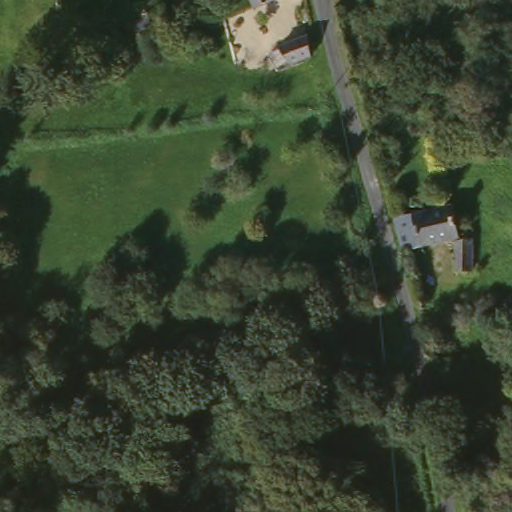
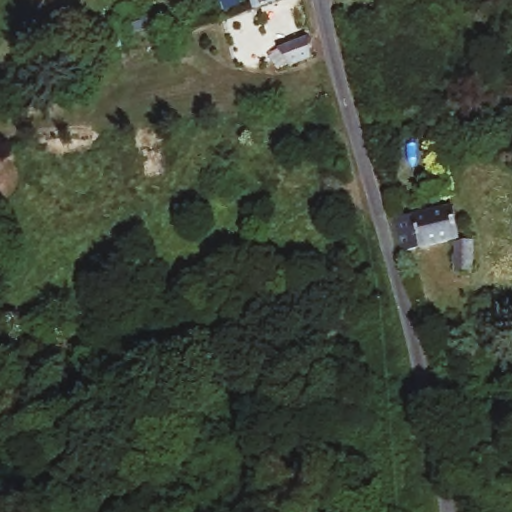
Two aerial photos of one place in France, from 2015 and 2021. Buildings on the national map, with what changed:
unchanged [(251,9),(249,0),(274,0),(251,9)]
unchanged [(150,19),(152,27),(135,32),(132,24),(150,19)]
unchanged [(100,27),(107,56),(80,63),(73,34),(100,27)]
unchanged [(313,64),(293,71),(292,71),(284,48),(307,40),(313,64)]
unchanged [(44,67),(46,80),(46,84),(22,88),(20,70),(44,67)]
unchanged [(462,207),(469,237),(411,250),(403,220),(462,207)]
unchanged [(483,241),(483,273),(465,273),(465,242),(483,241)]

